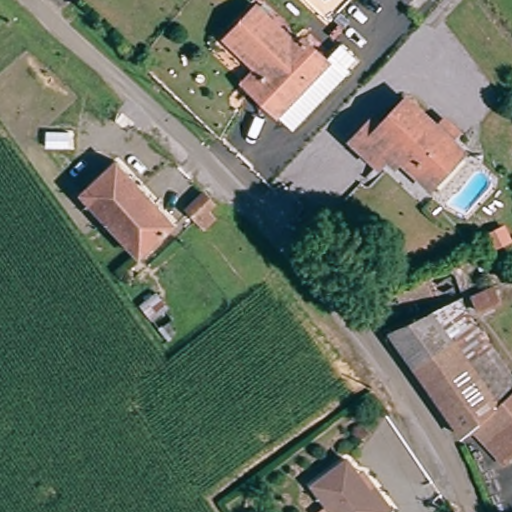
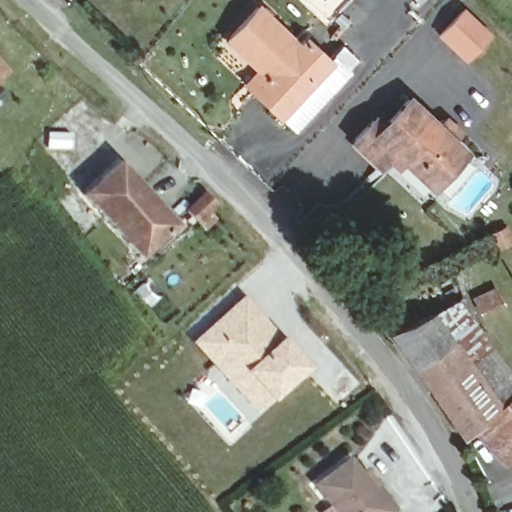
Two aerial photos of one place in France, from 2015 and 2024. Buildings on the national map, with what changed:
unchanged [(256,85),(269,71),(261,64),(230,34),(259,4),(298,42),(302,37),(326,61),(280,109),(256,85)]
new [(492,35),(465,63),(435,35),(462,6),(492,35)]
unchanged [(349,70),(291,130),(243,83),(261,64),(269,71),(256,85),(280,109),(326,61),(333,55),(349,70)]
new [(10,70),(0,80),(0,59),(10,70)]
unchanged [(472,150),(440,185),(399,148),(386,162),(359,137),(380,114),(389,121),(413,96),(472,150)]
demolished [(37,142),(59,159),(54,165),(65,179),(60,182),(65,191),(57,197),(2,130),(19,115),(23,119),(45,97),(63,115),(37,142)]
unchanged [(116,164),(174,226),(141,257),(132,247),(83,193),(116,164)]
unchanged [(200,226),(188,213),(203,200),(216,214),(200,226)]
new [(243,294),(307,367),(255,412),(189,341),(243,294)]
unchanged [(457,310),(512,384),(512,412),(475,432),(466,437),(393,338),(457,310)]
unchanged [(512,460),(508,463),(475,432),(512,412),(512,460)]
unchanged [(347,461),(370,488),(366,491),(383,512),(334,512),(315,490),(347,461)]

